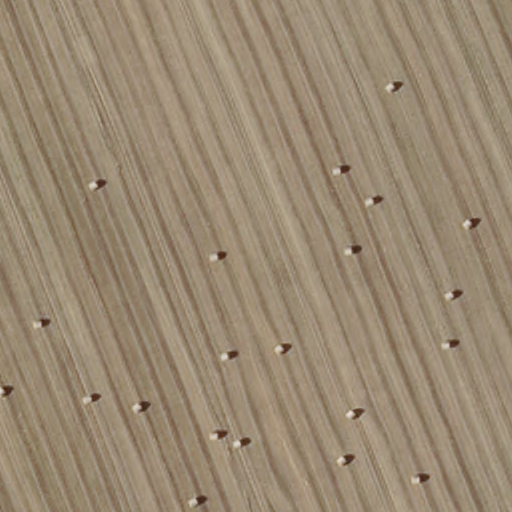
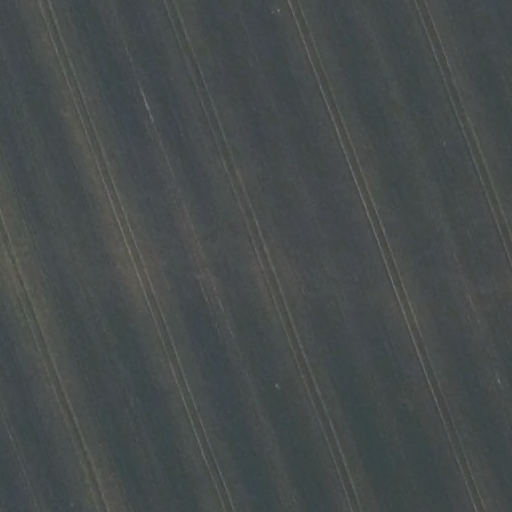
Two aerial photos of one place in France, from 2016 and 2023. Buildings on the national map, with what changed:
[]

